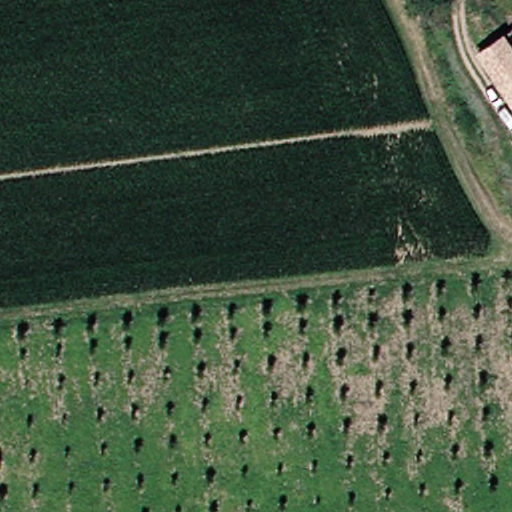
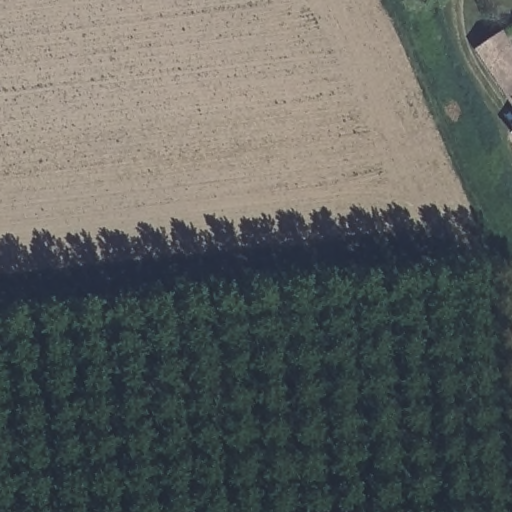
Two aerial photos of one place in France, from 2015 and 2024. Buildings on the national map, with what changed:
unchanged [(470,47),(492,34),(512,63),(512,97),(506,101),(470,47)]
unchanged [(512,127),(512,138),(508,131),(512,127)]

